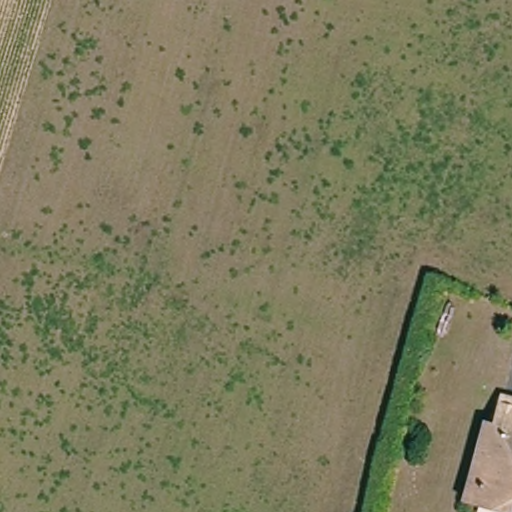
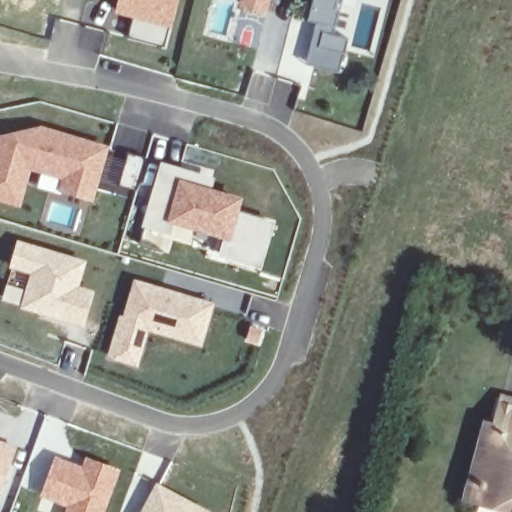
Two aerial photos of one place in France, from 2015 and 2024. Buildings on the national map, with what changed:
new [(113,13),(117,0),(179,0),(171,29),(166,48),(127,37),(132,19),(113,13)]
new [(267,16),(237,8),(238,0),(272,0),(267,16)]
new [(314,0),(343,0),(342,6),(337,4),(337,10),(341,11),(336,29),(308,22),(314,0)]
new [(325,32),(350,39),(346,54),(345,54),(341,73),(307,65),(317,30),(325,32)]
new [(85,143),(83,149),(102,155),(90,198),(62,190),(66,178),(41,171),(42,169),(24,163),(19,179),(24,181),(17,204),(0,198),(0,139),(42,130),(85,143)]
new [(127,154),(144,159),(134,194),(116,188),(127,154)]
new [(192,175),(215,181),(212,194),(242,202),(238,214),(275,225),(262,267),(224,255),(230,237),(176,221),(166,252),(142,246),(166,167),(192,175)]
new [(17,244),(82,262),(75,288),(90,293),(82,320),(67,315),(65,320),(22,307),(32,272),(10,266),(17,244)]
new [(199,343),(184,339),(124,322),(135,284),(195,302),(210,306),(199,343)]
unchanged [(483,503),(481,511),(467,506),(472,482),(484,435),(497,437),(507,406),(512,407),(512,511),(483,503)]
new [(0,491),(0,439),(17,446),(0,491)]
new [(81,464),(85,455),(122,470),(105,512),(64,512),(66,507),(39,497),(55,455),(81,464)]
new [(210,511),(209,512),(145,512),(159,486),(210,511)]

